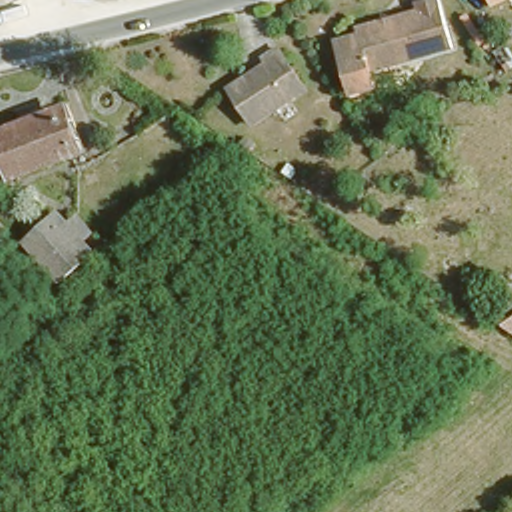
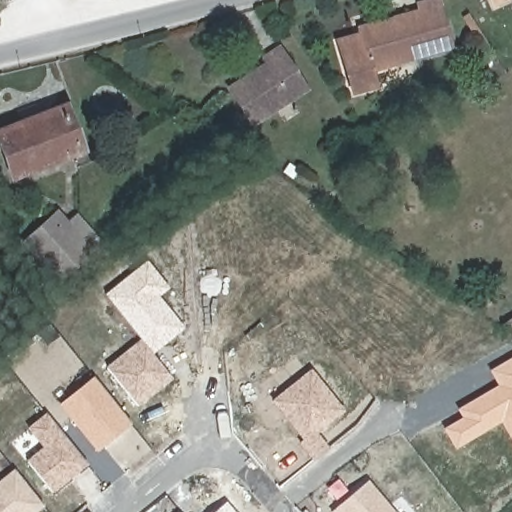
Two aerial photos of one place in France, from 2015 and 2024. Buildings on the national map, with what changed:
unchanged [(355,32),(417,13),(415,4),(428,0),(435,0),(450,50),(368,75),(372,90),(351,96),(342,66),(336,45),(357,39),(355,32)]
unchanged [(490,0),(511,0),(494,9),(490,0)]
unchanged [(304,89),(250,124),(228,88),(266,64),(263,58),(276,49),(304,89)]
unchanged [(81,144),(16,169),(0,129),(0,127),(65,103),(81,144)]
unchanged [(93,229),(85,235),(94,248),(58,279),(24,243),(57,205),(69,218),(80,210),(93,229)]
new [(170,288),(160,296),(185,327),(152,354),(173,379),(138,407),(106,368),(141,339),(106,294),(148,260),(170,288)]
new [(455,449),(443,429),(463,419),(457,409),(498,385),(489,371),(512,358),(512,441),(501,423),(455,449)]
new [(312,370),(345,412),(317,434),(330,447),(311,462),(297,444),(301,440),(273,402),(312,370)]
new [(132,424),(97,451),(60,404),(94,377),(132,424)]
new [(87,466),(53,492),(27,461),(43,448),(27,429),(45,413),(87,466)]
new [(46,508),(41,512),(0,512),(0,480),(14,469),(46,508)]
new [(395,512),(332,512),(368,481),(395,512)]
new [(235,512),(215,512),(226,502),(235,512)]

